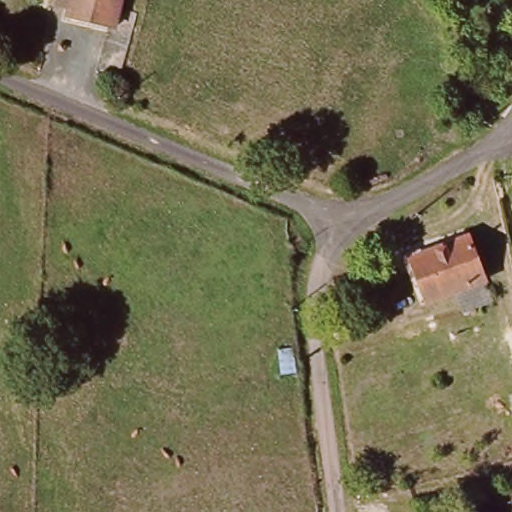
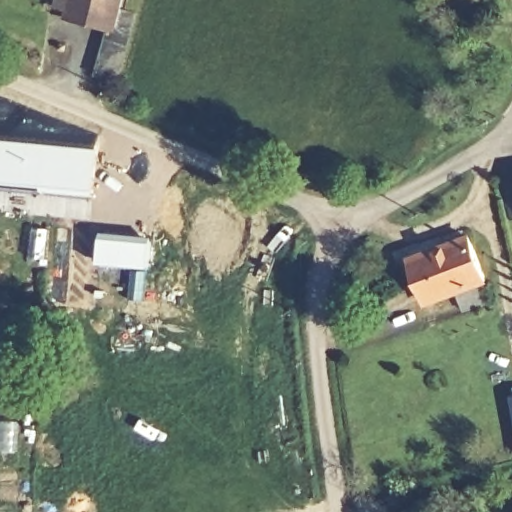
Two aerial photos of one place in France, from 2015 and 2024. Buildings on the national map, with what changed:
unchanged [(97,84),(107,35),(70,25),(71,16),(50,11),(52,0),(133,0),(128,17),(138,20),(122,91),(110,88),(97,84)]
demolished [(493,67),(477,59),(482,49),(489,31),(507,41),(493,67)]
new [(93,197),(29,188),(0,184),(0,138),(98,148),(93,197)]
new [(93,197),(89,220),(26,214),(0,213),(0,184),(29,188),(93,197)]
new [(96,263),(99,231),(156,238),(151,271),(144,303),(127,300),(131,268),(96,263)]
unchanged [(408,254),(414,252),(416,258),(434,254),(444,250),(474,241),(488,287),(439,300),(428,304),(422,306),(408,254)]
unchanged [(511,395),(512,395),(512,400),(511,395)]

